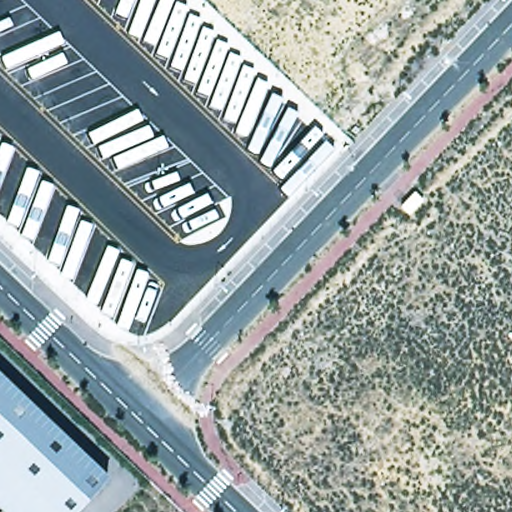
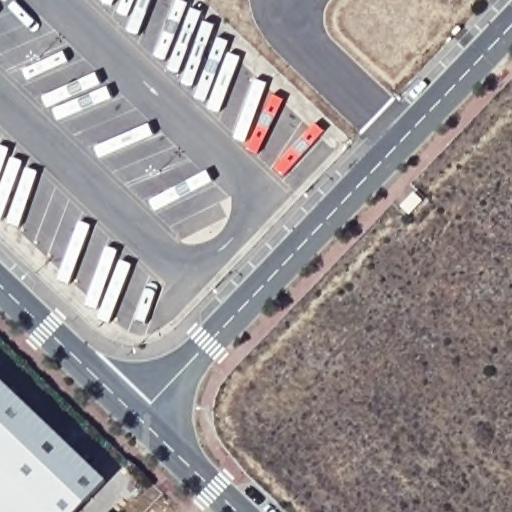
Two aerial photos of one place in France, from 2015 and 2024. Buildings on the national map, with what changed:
unchanged [(74,512),(2,512),(0,510),(0,381),(105,481),(74,512)]

